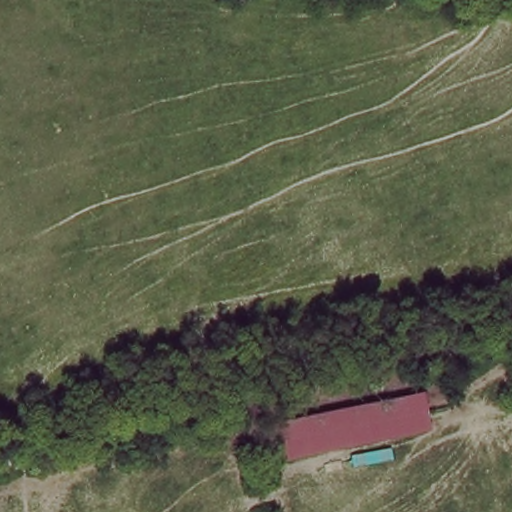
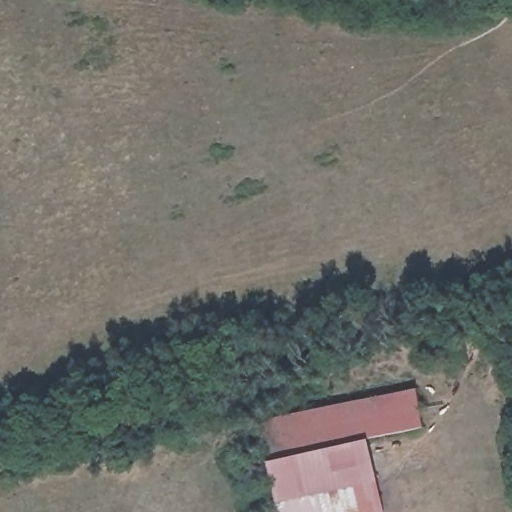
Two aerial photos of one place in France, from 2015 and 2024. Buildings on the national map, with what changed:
unchanged [(266,465),(258,423),(416,388),(425,431),(266,465)]
new [(382,512),(276,512),(266,465),(365,443),(382,512)]

